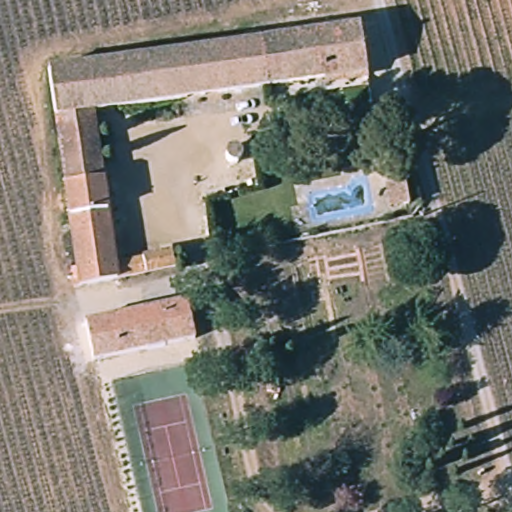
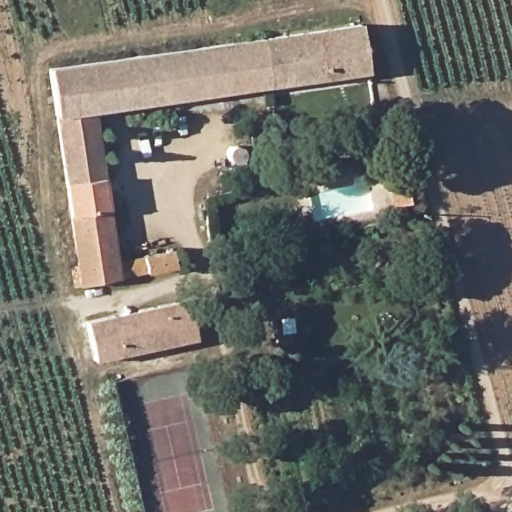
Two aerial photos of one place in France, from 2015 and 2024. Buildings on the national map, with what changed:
unchanged [(365,30),(371,77),(273,91),(273,88),(266,42),(365,30)]
unchanged [(273,88),(273,91),(97,115),(120,262),(178,255),(180,276),(83,290),(51,71),(266,42),(273,88)]
unchanged [(410,201),(395,205),(390,180),(406,178),(410,201)]
unchanged [(172,345),(99,356),(92,318),(166,306),(172,345)]

